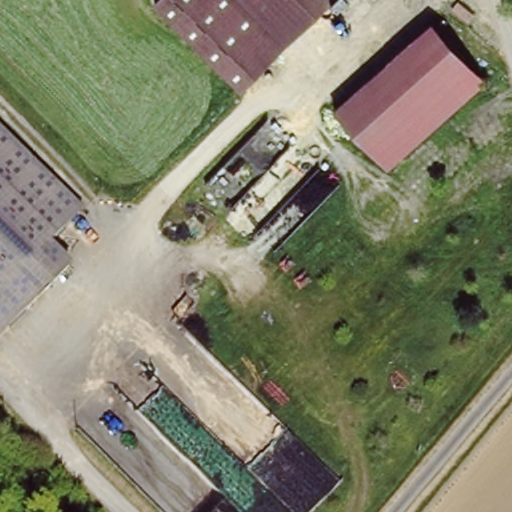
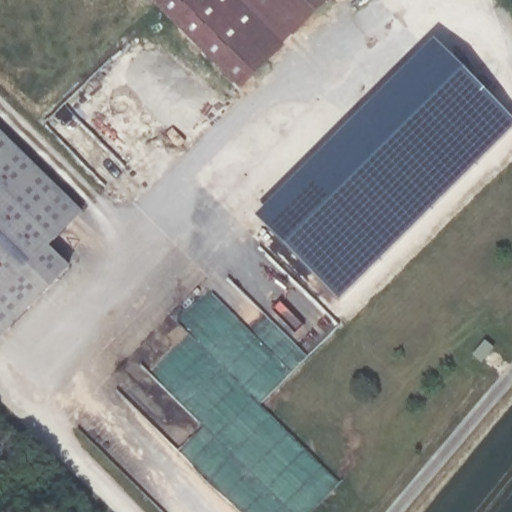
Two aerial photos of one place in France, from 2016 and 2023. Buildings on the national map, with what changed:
unchanged [(159,0),(334,0),(241,96),(149,10),(159,0)]
demolished [(434,26),(489,84),(390,174),(336,115),(434,26)]
new [(512,118),(512,130),(340,300),(258,217),(435,41),(512,118)]
unchanged [(78,206),(45,240),(66,262),(0,330),(0,128),(78,206)]

